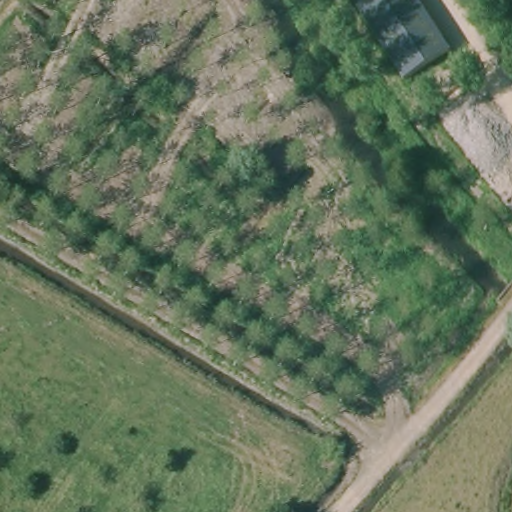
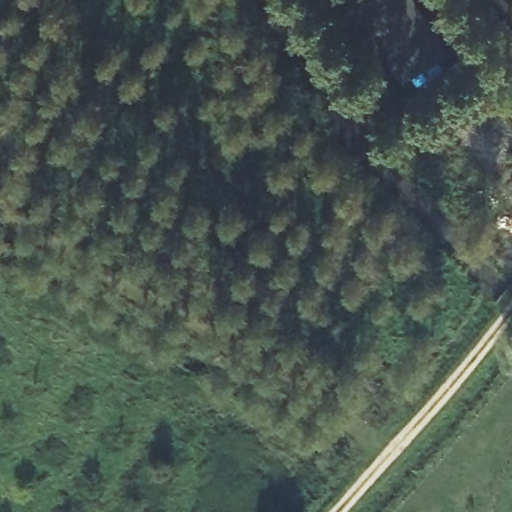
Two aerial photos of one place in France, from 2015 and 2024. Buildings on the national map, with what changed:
new [(400,81),(355,0),(421,0),(454,54),(400,81)]

